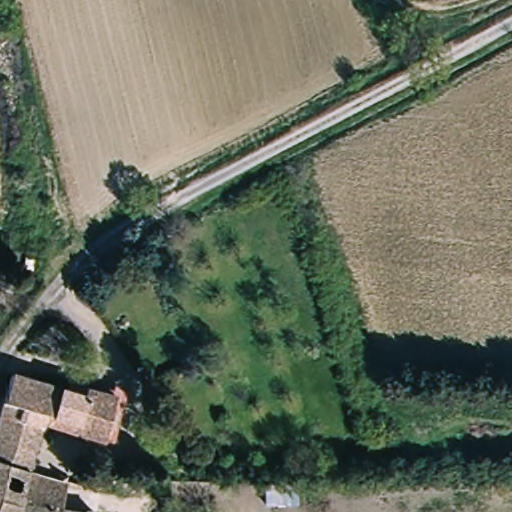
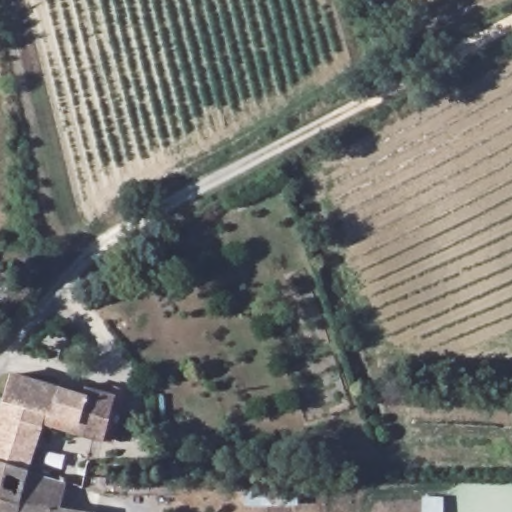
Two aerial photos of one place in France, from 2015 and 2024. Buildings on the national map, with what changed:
unchanged [(83,400),(86,392),(113,402),(104,443),(40,423),(26,472),(0,465),(0,414),(12,377),(83,400)]
unchanged [(19,503),(54,512),(0,512),(0,465),(26,472),(19,503)]
unchanged [(54,512),(19,503),(26,472),(66,484),(61,512),(54,512)]

